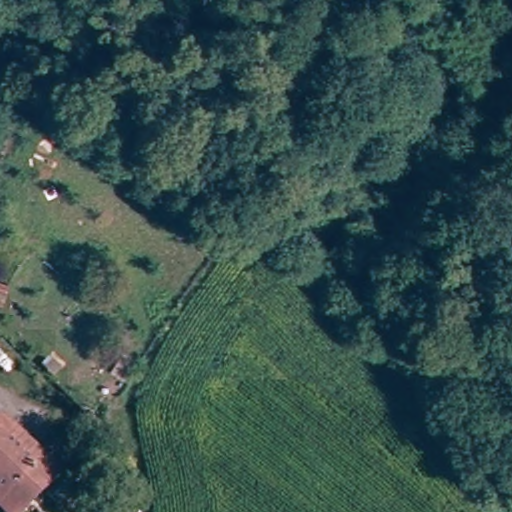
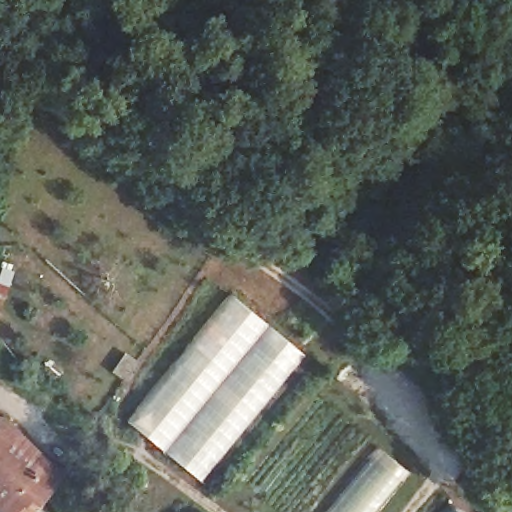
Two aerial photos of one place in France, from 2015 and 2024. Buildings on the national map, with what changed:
new [(231,294),(268,324),(164,450),(127,420),(231,294)]
new [(268,324),(306,356),(201,482),(164,450),(268,324)]
unchanged [(0,512),(0,422),(60,478),(28,512),(0,512)]
new [(410,473),(378,512),(324,512),(378,447),(410,473)]

